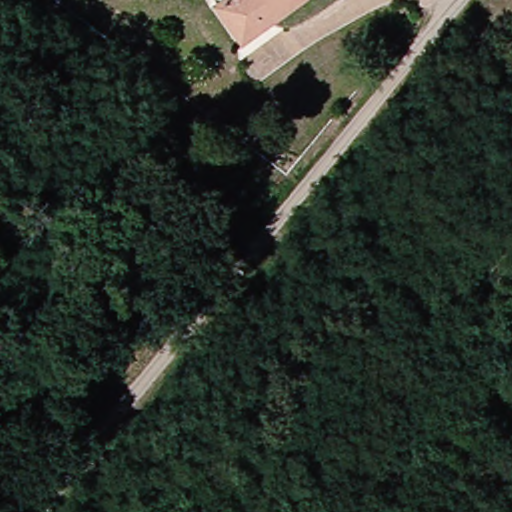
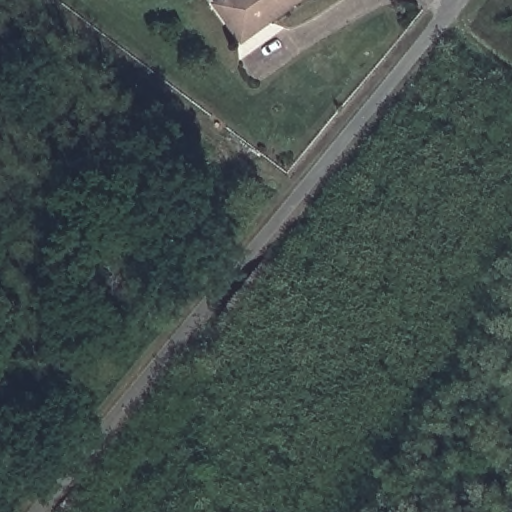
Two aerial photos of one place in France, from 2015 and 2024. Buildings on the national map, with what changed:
unchanged [(221,0),(302,0),(243,37),(221,0)]

